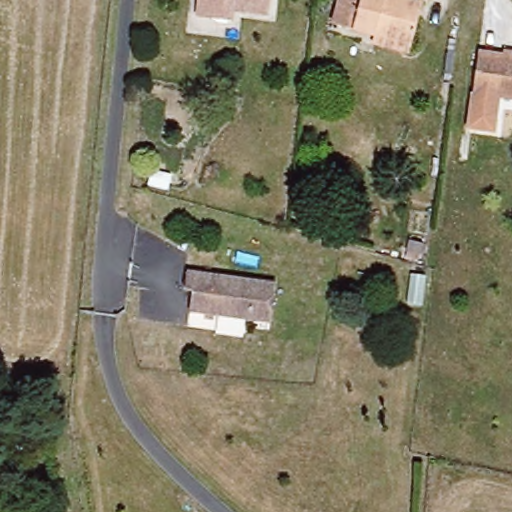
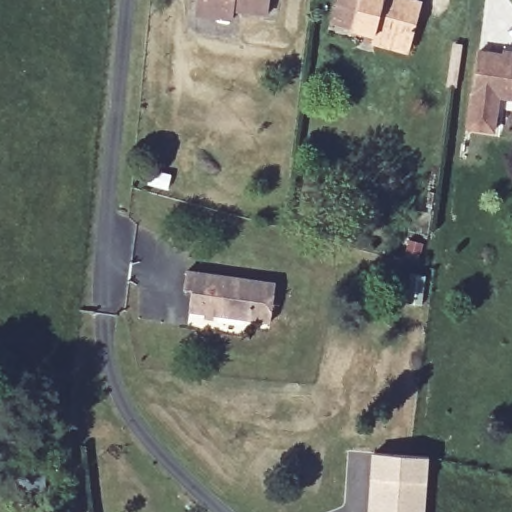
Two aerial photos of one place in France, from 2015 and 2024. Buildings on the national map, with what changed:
unchanged [(236,7),(236,16),(198,12),(199,0),(271,0),(270,11),(236,7)]
unchanged [(413,47),(337,28),(343,0),(394,0),(423,7),(413,47)]
unchanged [(478,81),(482,44),(512,47),(512,85),(478,81)]
unchanged [(478,81),(512,85),(512,100),(500,99),(496,134),(470,128),(478,81)]
unchanged [(151,170),(174,177),(170,192),(148,185),(151,170)]
unchanged [(187,315),(189,293),(180,292),(183,271),(264,281),(273,282),(269,325),(259,323),(187,315)]
unchanged [(408,273),(427,275),(424,309),(404,306),(408,273)]
new [(376,453),(431,455),(429,512),(374,512),(376,453)]

